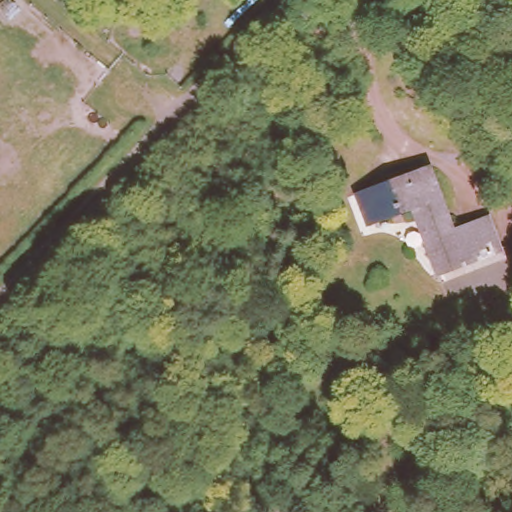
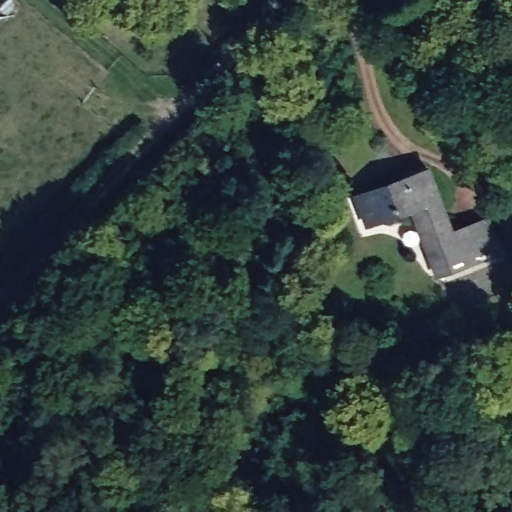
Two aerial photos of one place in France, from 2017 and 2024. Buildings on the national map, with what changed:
unchanged [(459,273),(431,280),(404,211),(371,221),(354,189),(424,164),(453,224),(484,215),(496,248),(459,273)]

